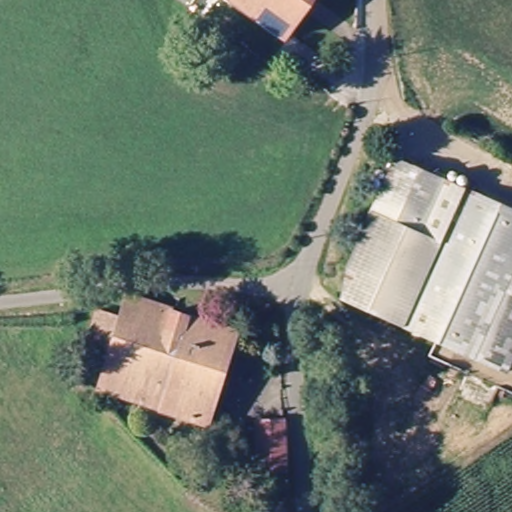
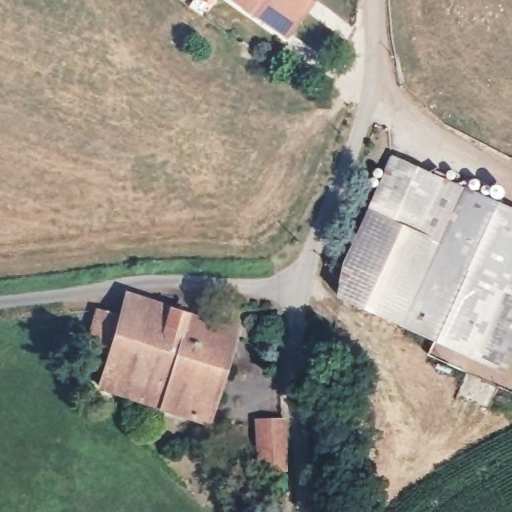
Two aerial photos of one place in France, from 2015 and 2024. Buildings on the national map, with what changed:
unchanged [(261,23),(227,0),(314,0),(285,40),(261,23)]
unchanged [(469,354),(344,302),(353,267),(397,158),(512,204),(512,252),(469,354)]
unchanged [(512,252),(512,338),(500,367),(469,354),(512,252)]
unchanged [(204,420),(99,389),(107,360),(84,352),(97,313),(119,320),(125,298),(231,327),(204,420)]
unchanged [(285,475),(257,474),(257,425),(285,424),(285,475)]

